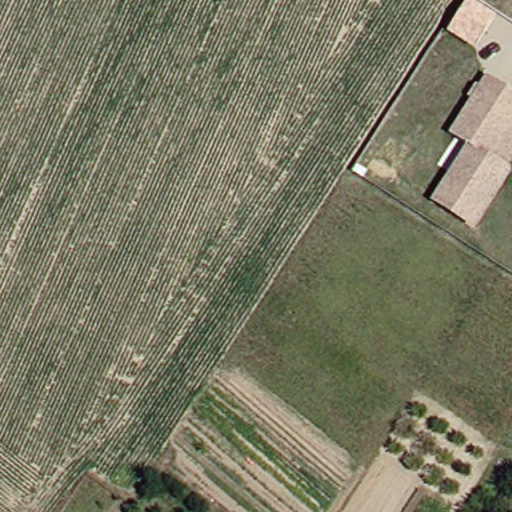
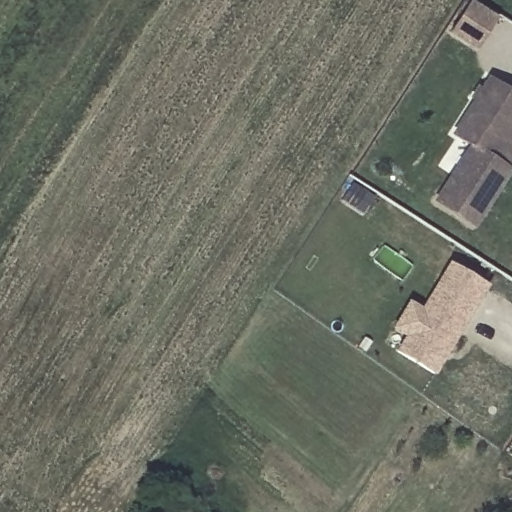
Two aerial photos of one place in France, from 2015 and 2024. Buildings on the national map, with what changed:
unchanged [(476,51),(448,35),(469,0),(471,0),(497,15),(476,51)]
unchanged [(467,221),(431,197),(467,142),(449,130),(484,75),(512,93),(512,113),(506,124),(512,128),(512,145),(500,164),(504,166),(467,221)]
new [(409,336),(397,327),(414,299),(427,307),(455,261),(493,284),(438,372),(402,348),(409,336)]

